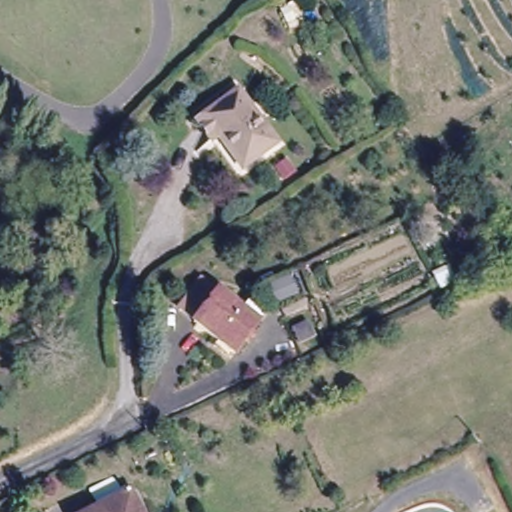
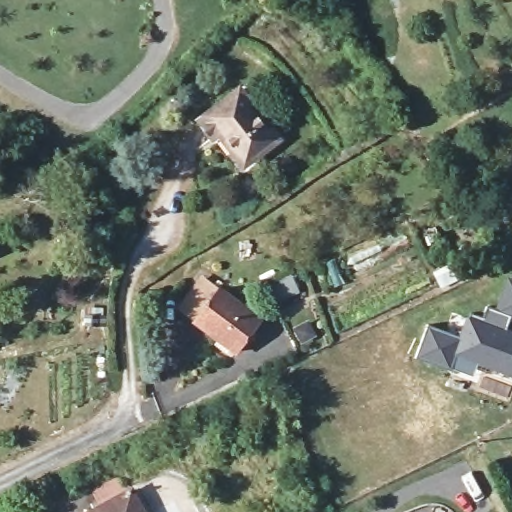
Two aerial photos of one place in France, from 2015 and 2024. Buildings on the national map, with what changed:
unchanged [(240,87),(280,142),(251,164),(226,133),(215,139),(199,116),(240,87)]
new [(452,361),(451,362),(416,350),(428,317),(462,330),(471,305),(483,309),(488,296),(499,301),(512,271),(512,309),(506,325),(512,328),(512,331),(512,332),(512,333),(512,366),(479,354),(474,369),(452,361)]
unchanged [(239,345),(193,321),(195,316),(182,308),(199,277),(259,309),(239,345)]
unchanged [(215,427),(199,433),(192,416),(205,410),(215,427)]
unchanged [(142,512),(80,512),(130,488),(142,512)]

